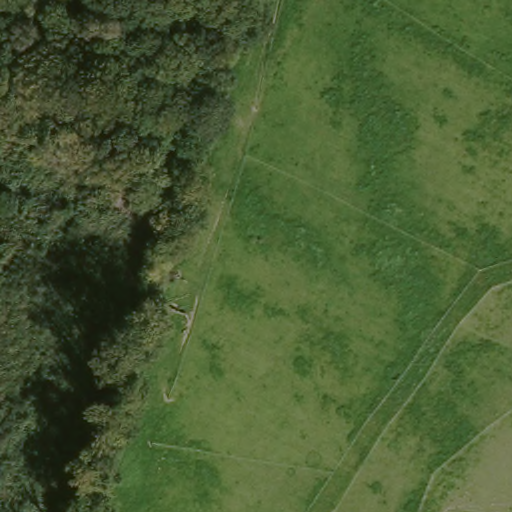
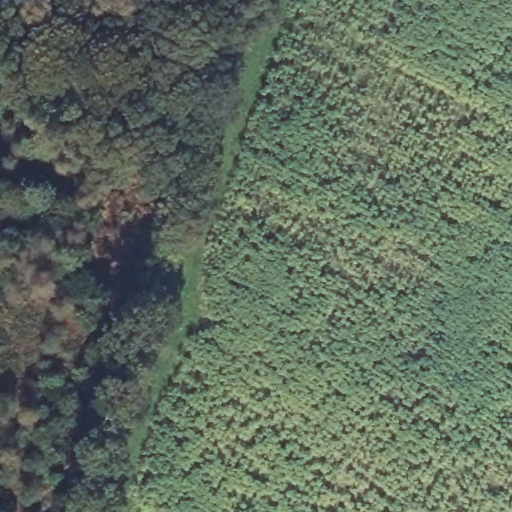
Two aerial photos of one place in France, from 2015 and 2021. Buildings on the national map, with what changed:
[]

